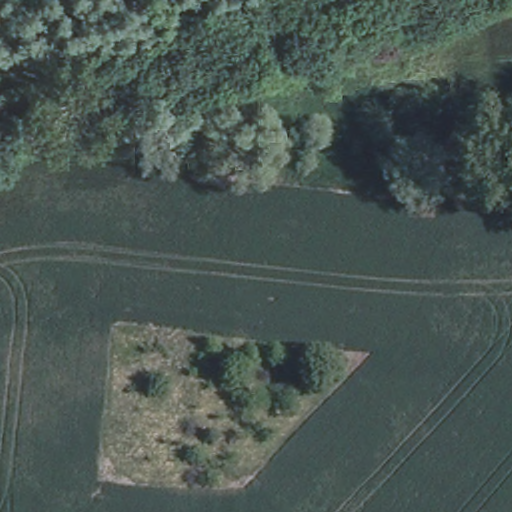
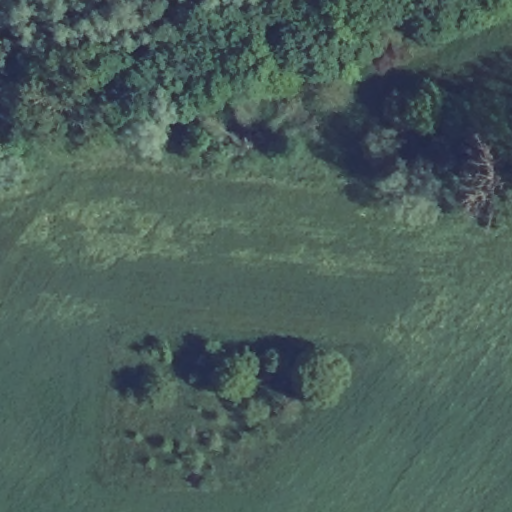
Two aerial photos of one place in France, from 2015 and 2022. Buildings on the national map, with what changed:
[]

